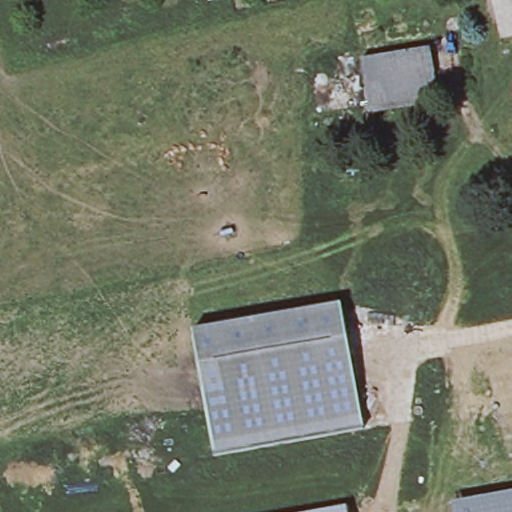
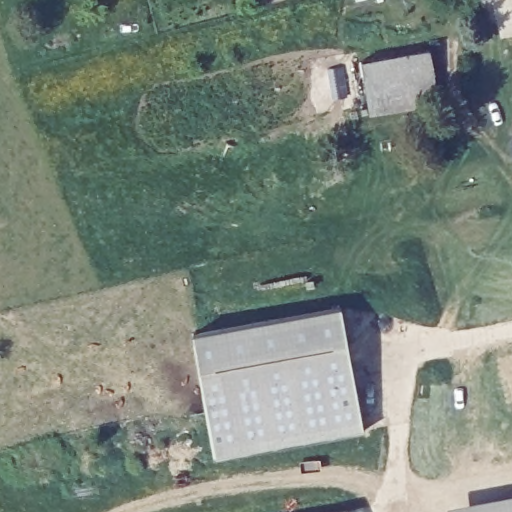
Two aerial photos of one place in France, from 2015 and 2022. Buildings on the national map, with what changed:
unchanged [(432,49),(435,73),(367,85),(363,60),(432,49)]
unchanged [(435,73),(440,100),(390,109),(388,101),(370,105),(367,85),(435,73)]
unchanged [(215,452),(193,328),(341,301),(364,425),(215,452)]
unchanged [(454,512),(452,505),(512,494),(512,512),(454,512)]
unchanged [(346,512),(319,512),(345,507),(346,512)]

